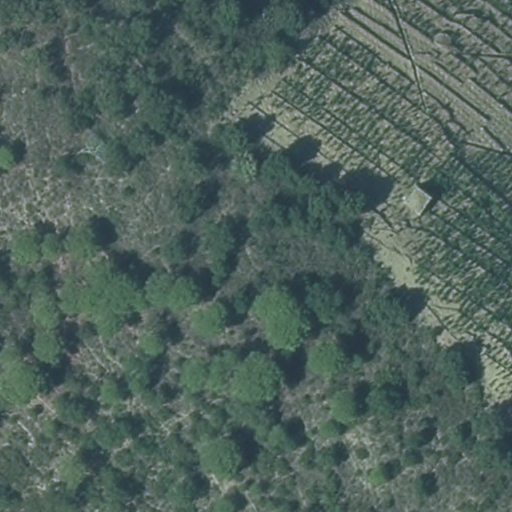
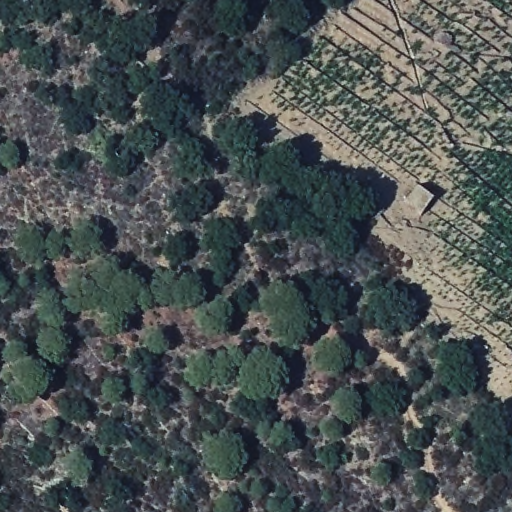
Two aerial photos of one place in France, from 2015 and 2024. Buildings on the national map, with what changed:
unchanged [(423,219),(404,204),(419,185),(436,200),(423,219)]

